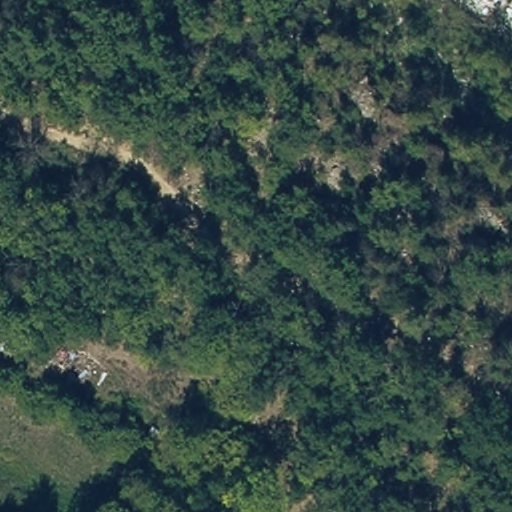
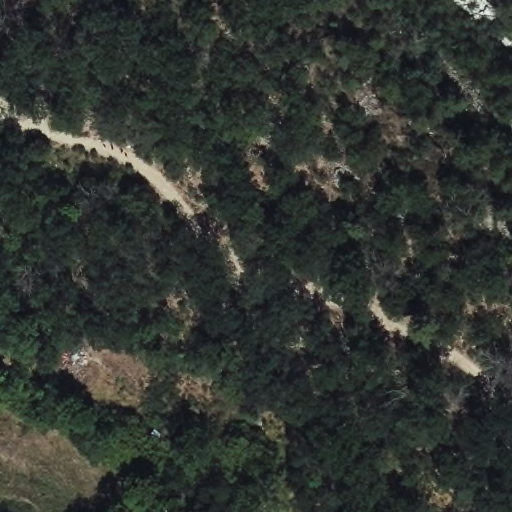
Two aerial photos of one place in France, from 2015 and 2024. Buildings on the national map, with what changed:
unchanged [(65,349),(102,363),(95,383),(56,368),(65,349)]

